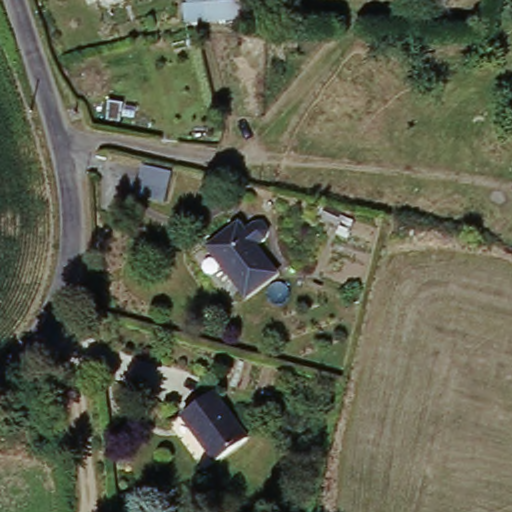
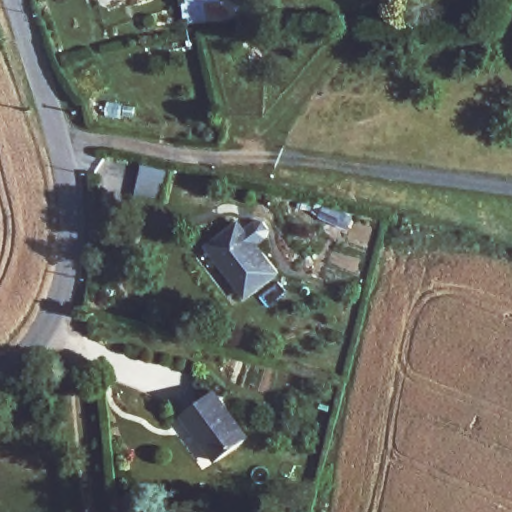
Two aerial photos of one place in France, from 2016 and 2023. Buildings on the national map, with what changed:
unchanged [(140,160),(171,168),(166,189),(135,182),(140,160)]
unchanged [(280,270),(247,295),(208,242),(240,218),(280,270)]
unchanged [(246,431),(217,457),(181,411),(210,386),(246,431)]

